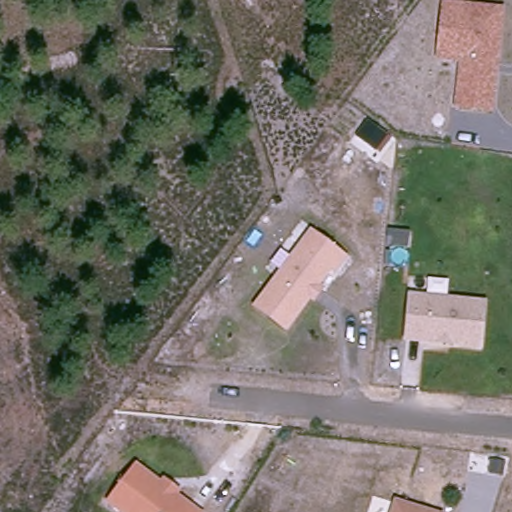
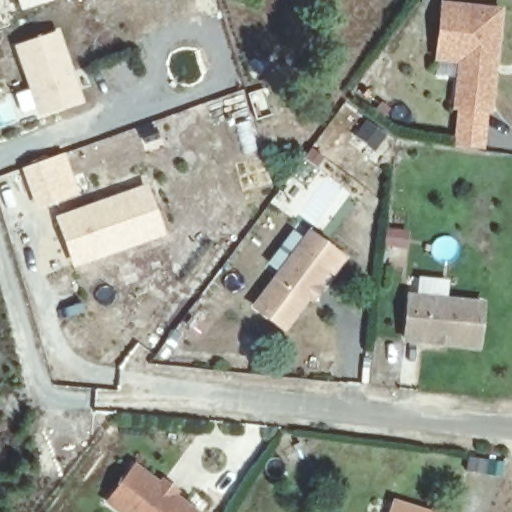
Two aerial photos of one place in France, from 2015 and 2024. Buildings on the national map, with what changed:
new [(22,0),(54,0),(26,10),(22,0)]
unchanged [(453,109),(457,62),(436,60),(441,1),(504,9),(494,115),(453,109)]
new [(39,117),(15,47),(59,31),(83,101),(39,117)]
new [(487,114),(485,149),(454,146),(458,110),(487,114)]
new [(64,151),(80,194),(34,208),(20,167),(64,151)]
new [(56,217),(147,186),(165,235),(73,268),(56,217)]
unchanged [(314,296),(311,294),(286,326),(256,303),(313,230),(346,256),(335,270),(332,267),(319,284),(322,286),(314,296)]
unchanged [(485,301),(482,347),(408,342),(409,293),(485,301)]
unchanged [(113,500),(140,465),(164,485),(167,480),(180,490),(177,495),(199,512),(128,512),(113,500)]
unchanged [(399,500),(438,512),(395,512),(399,500)]

